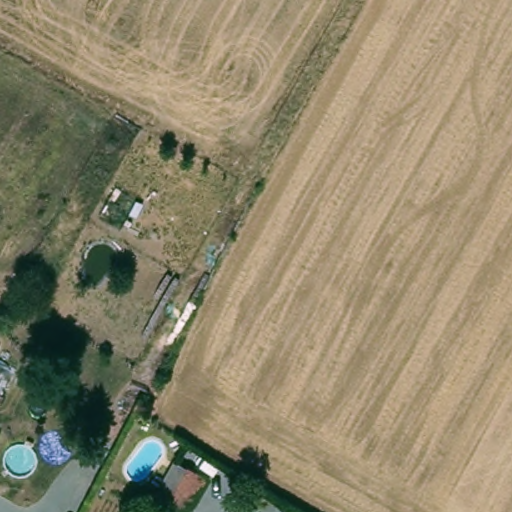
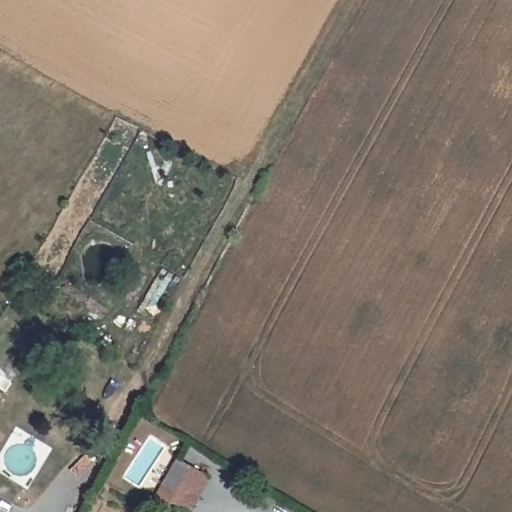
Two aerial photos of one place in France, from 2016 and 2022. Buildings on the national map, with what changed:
unchanged [(7,398),(0,409),(0,393),(7,398)]
unchanged [(177,456),(191,463),(189,470),(172,499),(169,497),(164,506),(154,501),(177,456)]

